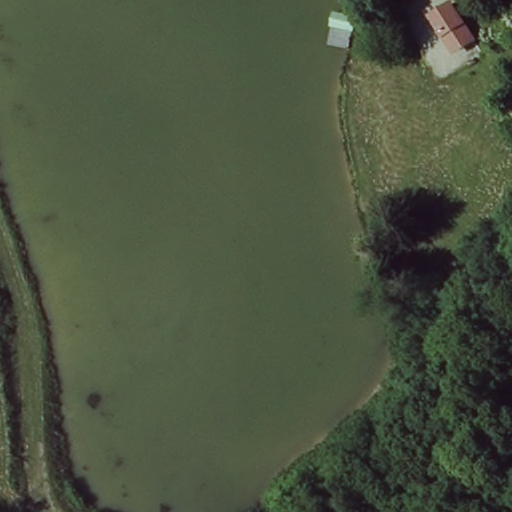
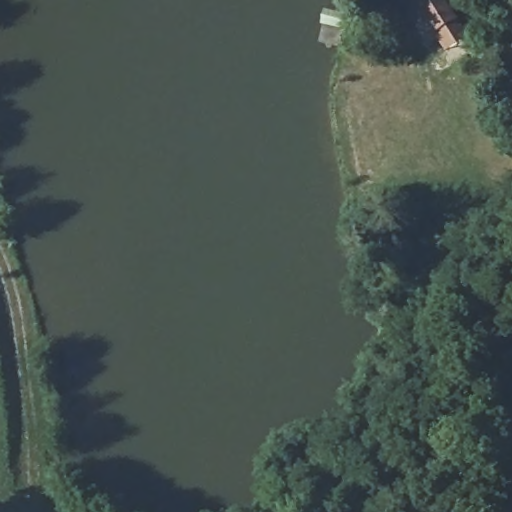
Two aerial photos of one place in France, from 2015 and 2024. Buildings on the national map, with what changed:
unchanged [(414,21),(422,0),(449,0),(438,29),(414,21)]

